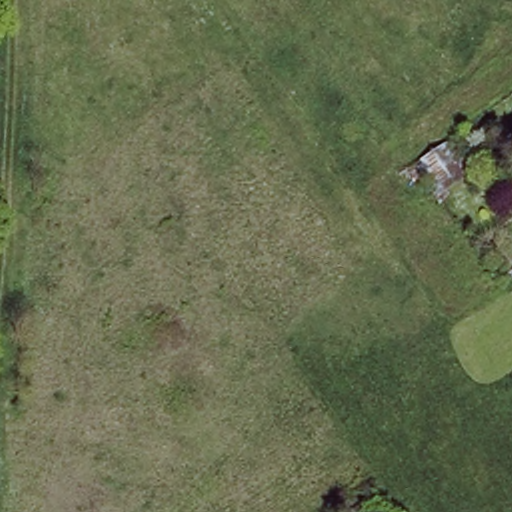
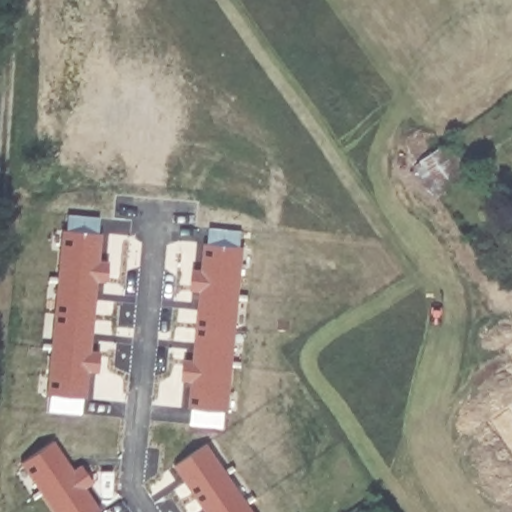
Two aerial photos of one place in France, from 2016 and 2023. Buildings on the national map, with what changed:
unchanged [(469,175),(435,200),(414,167),(445,142),(469,175)]
new [(64,231),(67,231),(68,217),(100,220),(99,234),(102,234),(100,261),(110,262),(108,282),(99,281),(92,351),(102,352),(100,372),(90,371),(88,398),(85,397),(83,414),(51,411),(52,395),(49,395),(64,231)]
new [(186,359),(195,361),(202,291),(192,290),(194,269),(203,271),(205,244),(209,244),(210,230),(242,233),(241,247),(245,247),(230,411),(227,411),(225,427),(194,424),(195,408),(192,407),(194,381),(184,381),(186,359)]
new [(55,441),(75,471),(84,465),(95,482),(87,487),(103,510),(100,512),(56,512),(23,463),(55,441)]
new [(210,443),(257,512),(210,512),(178,466),(210,443)]

